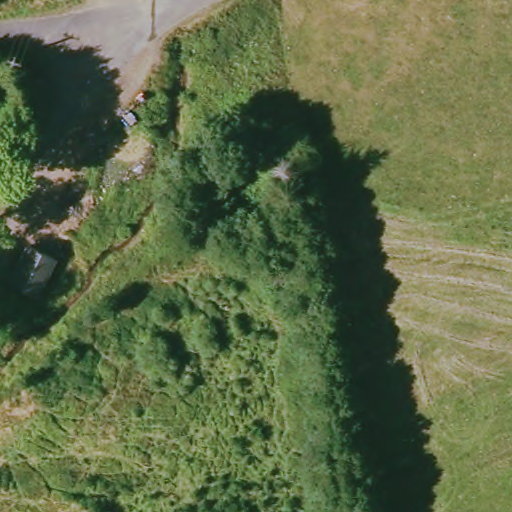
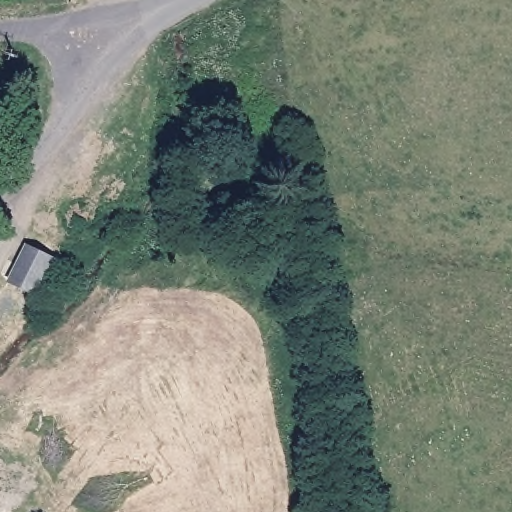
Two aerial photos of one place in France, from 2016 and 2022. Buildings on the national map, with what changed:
unchanged [(48,257),(33,296),(8,286),(23,247),(48,257)]

